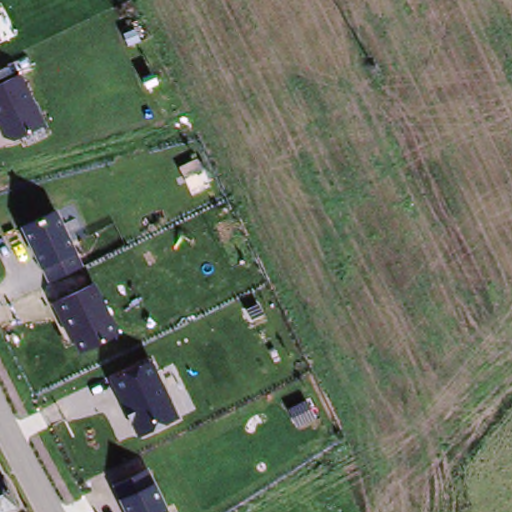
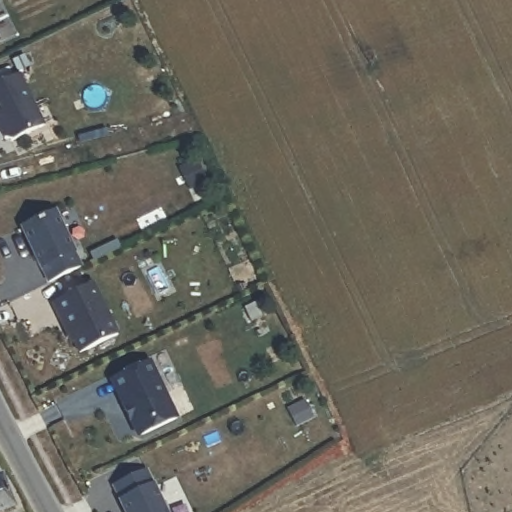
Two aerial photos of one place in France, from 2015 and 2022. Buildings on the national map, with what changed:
unchanged [(2,136),(0,133),(0,82),(20,73),(43,122),(12,140),(2,136)]
unchanged [(22,228),(57,211),(82,266),(47,283),(22,228)]
unchanged [(54,304),(95,285),(118,332),(78,353),(54,304)]
unchanged [(110,380),(152,360),(180,417),(138,437),(110,380)]
unchanged [(148,469),(168,512),(124,512),(113,486),(148,469)]
unchanged [(0,512),(0,476),(10,472),(22,504),(1,512),(0,512)]

